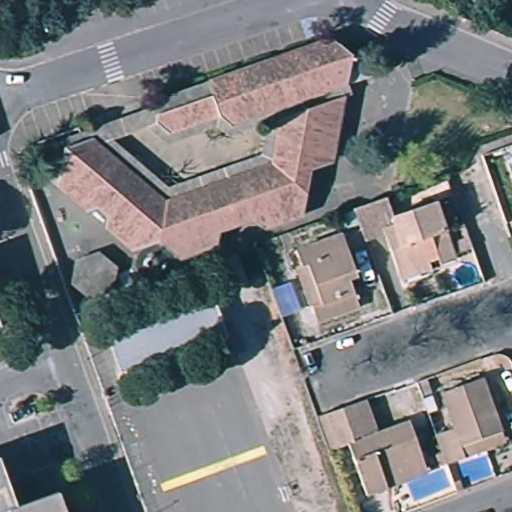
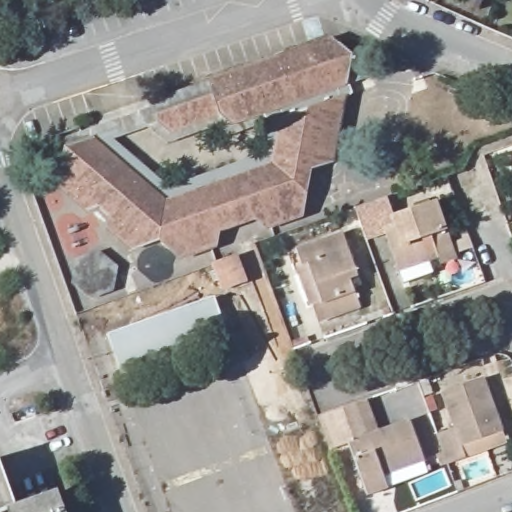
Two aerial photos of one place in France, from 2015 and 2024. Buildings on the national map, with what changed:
unchanged [(334,43),(211,88),(207,90),(151,110),(151,121),(166,134),(217,116),(228,125),(274,110),(278,120),(269,165),(161,202),(88,138),(60,146),(53,139),(146,110),(144,102),(201,83),(204,81),(326,37),(334,43)]
unchanged [(348,56),(342,87),(344,95),(339,96),(328,163),(308,170),(297,217),(261,230),(249,219),(216,231),(213,247),(176,260),(154,241),(127,251),(102,228),(104,217),(95,208),(83,212),(54,188),(60,146),(88,138),(161,202),(269,165),(278,120),(274,110),(228,125),(217,116),(166,134),(151,121),(151,110),(207,90),(211,88),(334,43),(348,56)]
unchanged [(407,281),(404,271),(391,233),(371,239),(361,208),(390,198),(397,217),(442,202),(462,260),(447,265),(437,236),(428,240),(435,261),(439,270),(407,281)]
unchanged [(358,275),(349,278),(359,306),(317,322),(298,267),(303,265),(298,250),(343,234),(358,275)]
unchanged [(113,267),(109,291),(88,299),(67,284),(71,260),(94,251),(113,267)]
unchanged [(248,280),(222,290),(213,265),(239,255),(248,280)]
unchanged [(228,334),(121,373),(108,336),(215,298),(228,334)]
unchanged [(507,443),(447,466),(436,435),(456,427),(443,392),(483,377),(507,443)]
unchanged [(377,422),(410,411),(430,465),(369,486),(349,434),(329,441),(317,407),(364,390),(377,422)]
unchanged [(58,495),(64,512),(0,512),(0,467),(15,511),(58,495)]

